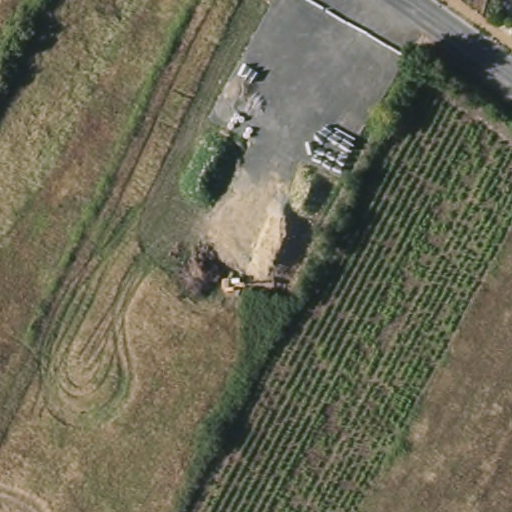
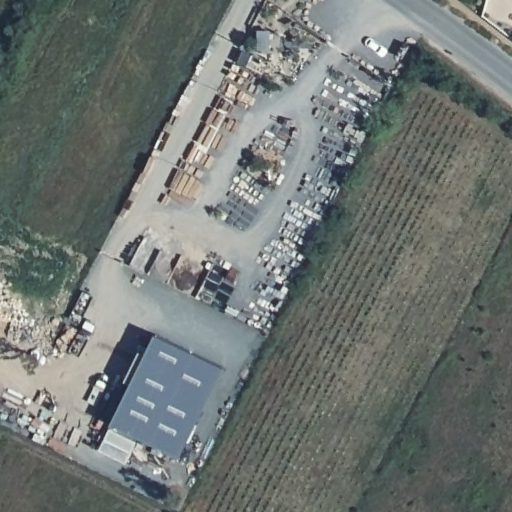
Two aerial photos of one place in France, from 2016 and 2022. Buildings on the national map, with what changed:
new [(155,335),(223,370),(177,459),(110,424),(155,335)]

